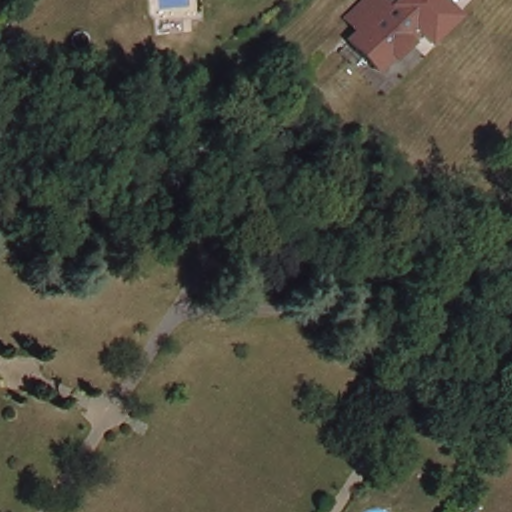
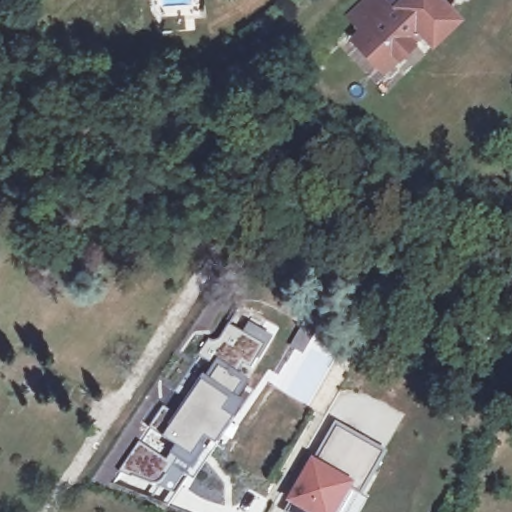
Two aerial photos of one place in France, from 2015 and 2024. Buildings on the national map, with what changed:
unchanged [(430,44),(419,33),(409,42),(411,44),(397,59),(394,56),(379,71),(349,41),(359,32),(346,19),(366,0),(380,0),(389,10),(400,0),(439,0),(457,18),(430,44)]
new [(259,358),(251,368),(243,363),(236,374),(251,384),(248,388),(256,392),(196,480),(188,476),(177,496),(158,487),(123,473),(141,443),(170,462),(173,456),(179,447),(167,438),(150,428),(164,409),(178,419),(191,402),(176,391),(188,373),(204,383),(216,366),(201,355),(209,342),(221,341),(230,326),(244,334),(251,324),(274,338),(261,360),(259,358)]
new [(351,491),(340,512),(288,512),(291,505),(289,503),(313,459),(315,460),(337,423),(389,452),(363,498),(351,491)]

